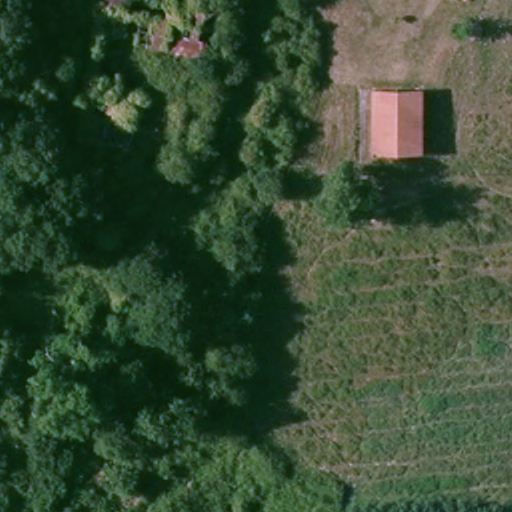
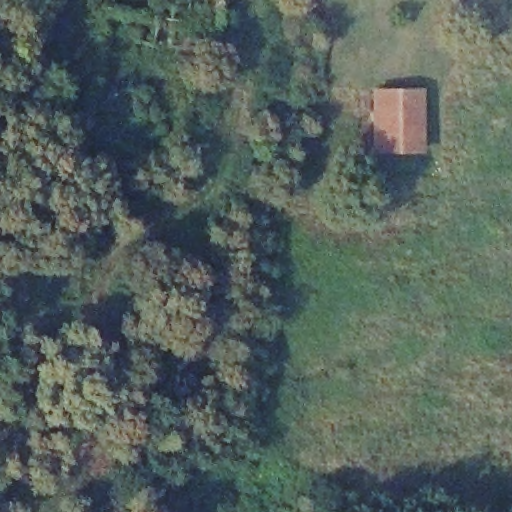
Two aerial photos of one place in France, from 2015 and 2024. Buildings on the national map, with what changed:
unchanged [(348,165),(347,87),(412,84),(414,163),(348,165)]

